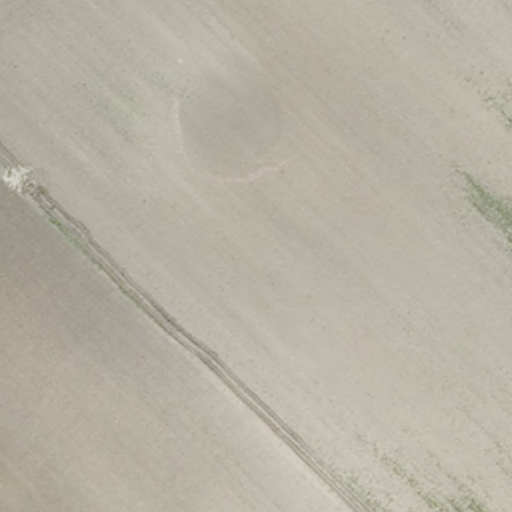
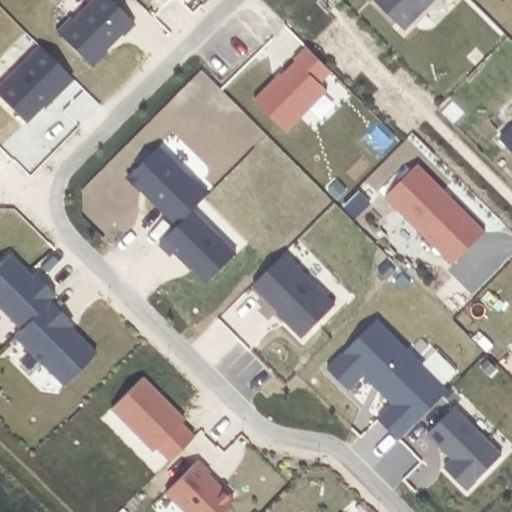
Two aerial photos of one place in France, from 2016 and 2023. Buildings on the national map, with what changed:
new [(71,14),(74,17),(92,0),(111,0),(135,24),(123,36),(121,34),(90,67),(56,31),(71,14)]
new [(405,29),(375,0),(435,0),(405,29)]
new [(39,45),(74,80),(46,109),(43,106),(27,123),(0,98),(0,85),(39,45)]
new [(158,145),(194,178),(162,212),(126,177),(158,145)]
new [(418,163),(487,230),(454,264),(384,196),(418,163)]
new [(192,208),(238,252),(210,281),(196,267),(192,270),(174,252),(171,255),(159,245),(192,208)]
new [(20,330),(11,321),(13,319),(0,307),(0,264),(10,254),(31,274),(33,272),(56,295),(50,301),(72,322),(69,327),(97,351),(64,386),(14,337),(20,330)]
new [(285,254),(337,305),(301,338),(275,312),(277,310),(253,286),(285,254)]
new [(376,318),(408,348),(422,333),(461,372),(446,387),(450,391),(400,442),(376,420),(395,402),(367,374),(350,390),(328,368),(376,318)]
new [(142,376),(186,418),(182,423),(194,434),(170,461),(156,449),(154,452),(110,409),(142,376)]
new [(451,459),(427,433),(454,406),(502,454),(469,491),(444,466),(451,459)]
new [(210,472),(208,475),(235,500),(223,512),(184,512),(165,494),(198,460),(210,472)]

